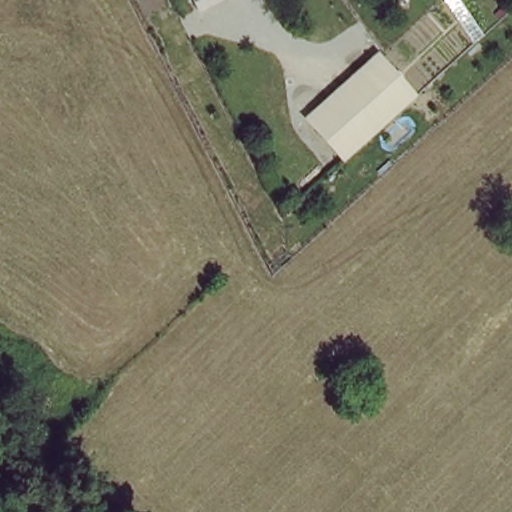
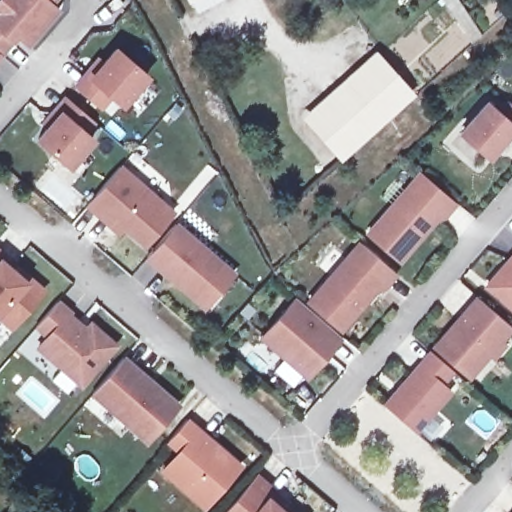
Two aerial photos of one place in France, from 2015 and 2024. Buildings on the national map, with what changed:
new [(0,0),(53,0),(50,4),(57,10),(28,45),(17,35),(3,52),(0,50),(0,0)]
new [(102,56),(106,60),(119,45),(150,71),(126,99),(115,90),(104,102),(80,82),(91,69),(102,56)]
new [(1,54),(0,54),(0,53),(1,54)]
unchanged [(412,88),(346,149),(312,115),(381,55),(412,88)]
new [(53,125),(48,121),(70,96),(97,120),(87,131),(96,138),(73,165),(42,138),(53,125)]
new [(509,102),(512,105),(512,130),(489,157),(461,133),(487,104),(499,115),(509,102)]
new [(100,216),(87,205),(119,167),(173,213),(146,244),(125,226),(119,232),(100,216)]
new [(421,173),(456,203),(444,217),(440,214),(400,261),(369,234),(421,173)]
new [(175,224),(233,273),(205,306),(147,257),(175,224)]
new [(361,243),(396,273),(384,287),(381,284),(341,330),(310,302),(361,243)]
new [(8,255),(4,260),(43,293),(15,325),(0,312),(0,248),(8,255)]
new [(512,257),(512,309),(486,286),(512,257)]
unchanged [(495,358),(489,353),(470,377),(435,347),(478,297),(512,327),(500,342),(506,346),(495,358)]
new [(295,300),(340,339),(307,377),(262,338),(295,300)]
new [(70,313),(74,310),(115,345),(110,351),(81,385),(39,347),(48,336),(36,326),(57,302),(70,313)]
new [(431,352),(453,370),(442,383),(451,391),(415,432),(384,406),(431,352)]
new [(123,357),(178,406),(147,441),(92,393),(123,357)]
new [(180,452),(168,441),(186,420),(240,466),(205,507),(179,485),(163,471),(176,457),(180,452)]
new [(268,492),(279,501),(275,506),(282,512),(223,512),(255,476),(270,489),(268,492)]

